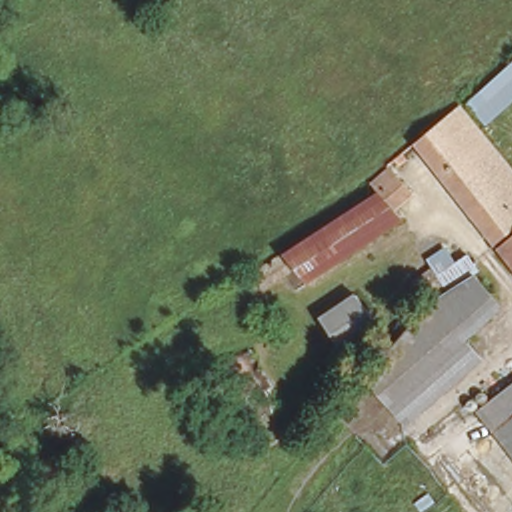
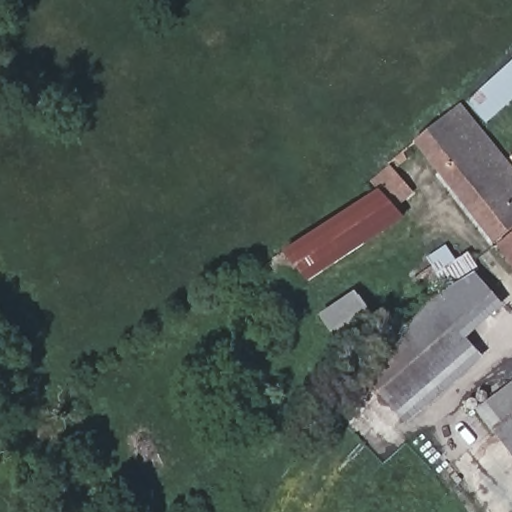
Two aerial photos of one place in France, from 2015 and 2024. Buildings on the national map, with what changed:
unchanged [(468,102),(512,59),(512,106),(490,127),(468,102)]
unchanged [(437,182),(413,152),(459,110),(484,140),(437,182)]
unchanged [(484,140),(512,173),(512,237),(493,253),(437,182),(484,140)]
unchanged [(374,199),(378,196),(372,187),(391,171),(412,197),(394,211),(402,222),(309,287),(298,270),(264,291),(254,274),(374,199)]
unchanged [(512,277),(493,253),(512,237),(512,277)]
unchanged [(405,427),(362,376),(425,307),(409,285),(429,271),(424,259),(442,247),(452,262),(467,252),(478,272),(508,314),(467,340),(482,360),(405,427)]
unchanged [(381,328),(345,353),(317,315),(357,291),(381,328)]
unchanged [(476,415),(466,415),(462,405),(482,389),(491,396),(512,380),(512,459),(492,435),(476,415)]

